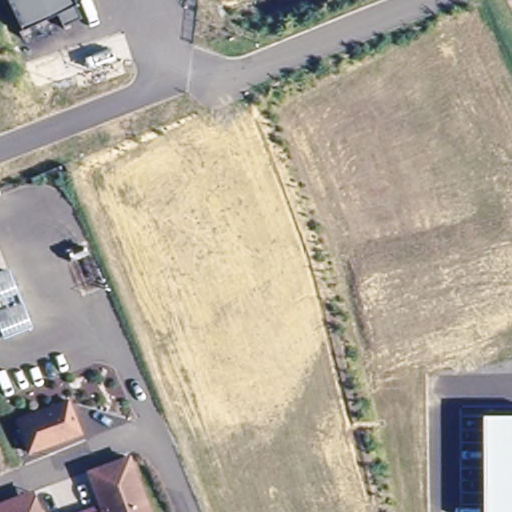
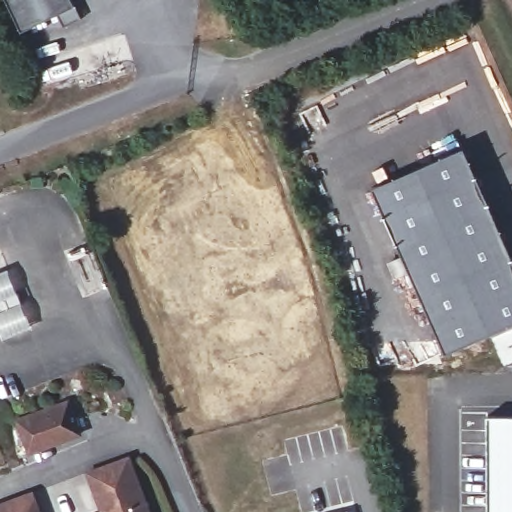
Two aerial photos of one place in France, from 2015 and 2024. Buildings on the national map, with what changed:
unchanged [(22,30),(7,0),(72,0),(74,4),(22,30)]
new [(489,200),(512,254),(512,326),(489,335),(446,352),(390,231),(372,187),(463,146),(489,200)]
unchanged [(9,269),(31,325),(4,335),(0,325),(0,272),(9,269)]
new [(512,363),(503,367),(489,335),(512,326),(512,363)]
unchanged [(72,403),(83,436),(31,455),(20,421),(72,403)]
unchanged [(512,512),(486,512),(487,414),(512,414),(512,512)]
unchanged [(91,475),(132,461),(149,512),(103,512),(91,475)]
unchanged [(20,500),(34,495),(38,505),(40,512),(0,512),(0,506),(20,500)]
new [(347,512),(343,512),(347,511),(347,512)]

